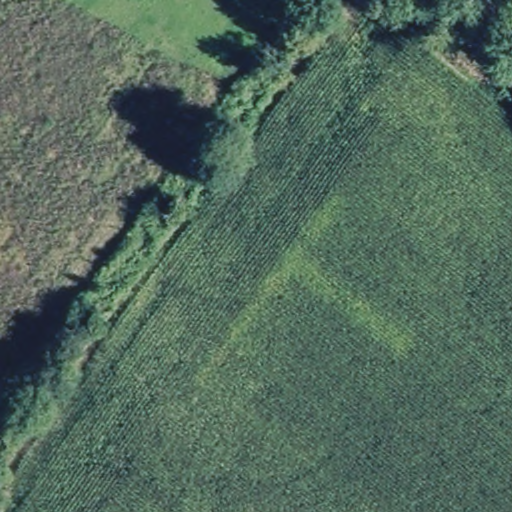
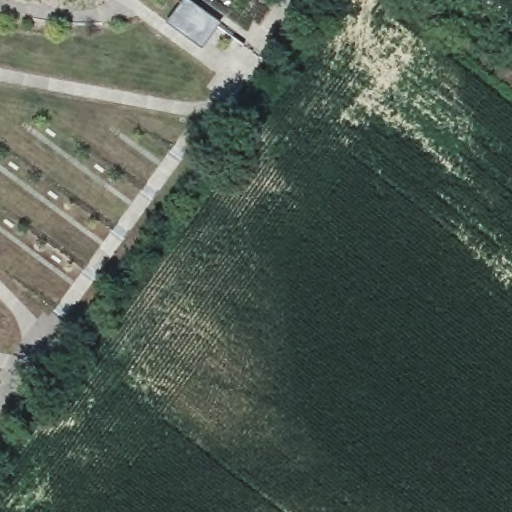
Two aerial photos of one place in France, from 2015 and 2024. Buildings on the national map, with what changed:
new [(165,24),(181,0),(217,26),(200,50),(165,24)]

